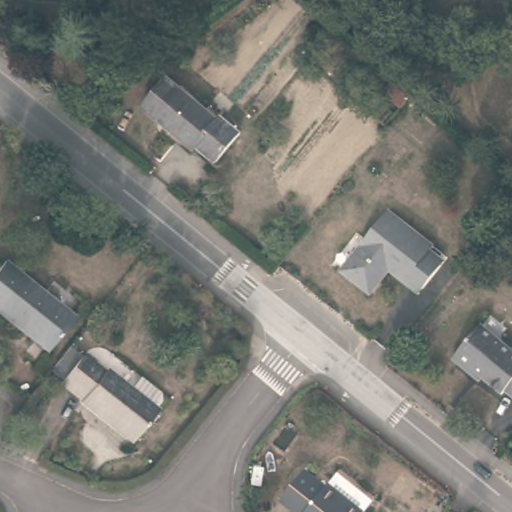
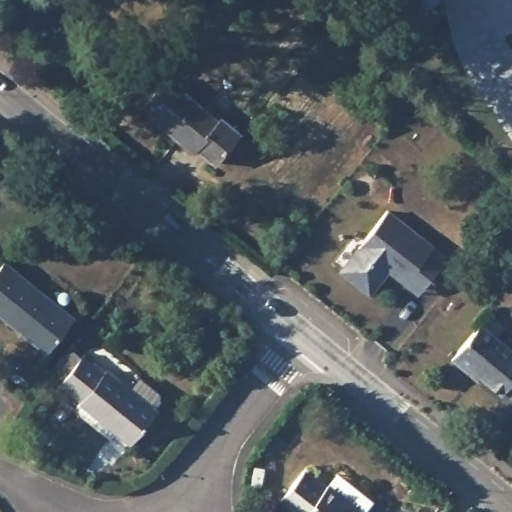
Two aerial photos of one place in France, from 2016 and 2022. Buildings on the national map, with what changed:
new [(512,31),(506,33),(511,45),(512,45),(512,140),(482,97),(465,67),(454,41),(447,14),(445,0),(512,0),(512,31)]
unchanged [(186,148),(183,151),(134,108),(160,79),(208,122),(213,116),(232,133),(205,164),(186,148)]
unchanged [(382,271),(366,292),(335,268),(382,208),(426,242),(418,252),(437,266),(418,289),(413,296),(382,271)]
unchanged [(0,310),(0,264),(4,259),(75,314),(50,347),(0,310)]
unchanged [(500,395),(475,376),(472,378),(457,366),(486,330),(512,351),(512,401),(502,392),(500,395)]
unchanged [(81,353),(102,370),(104,367),(126,384),(139,368),(154,380),(157,397),(152,405),(157,409),(127,446),(74,404),(76,400),(55,384),(57,380),(47,371),(66,347),(77,357),(81,353)]
unchanged [(301,512),(285,498),(307,471),(326,487),(330,483),(332,485),(341,473),(373,499),(365,510),(367,511),(367,512),(301,512)]

